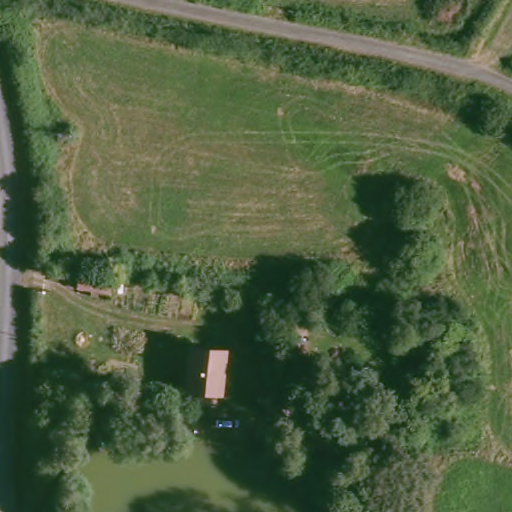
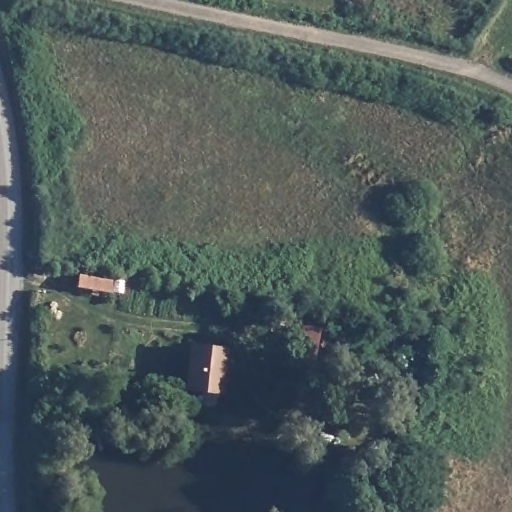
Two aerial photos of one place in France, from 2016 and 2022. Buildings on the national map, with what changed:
unchanged [(109,277),(107,291),(75,287),(77,273),(109,277)]
unchanged [(225,351),(221,374),(218,391),(188,386),(190,369),(195,346),(225,351)]

